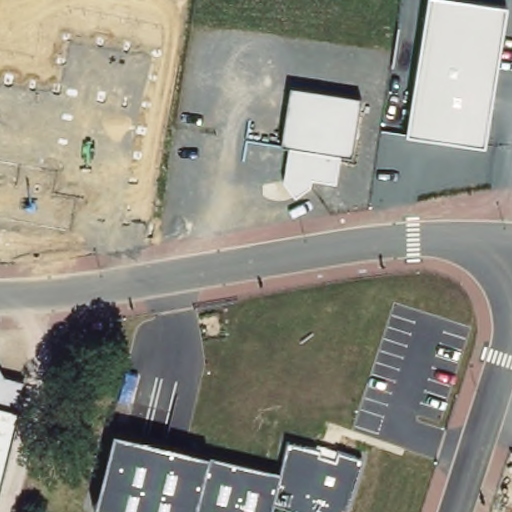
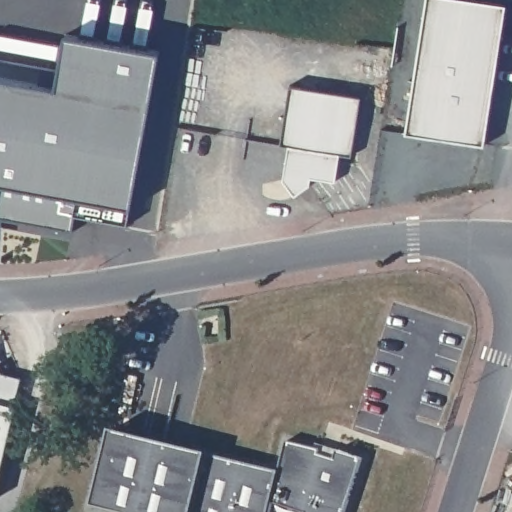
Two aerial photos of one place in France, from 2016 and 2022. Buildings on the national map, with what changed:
unchanged [(484,146),(405,135),(425,0),(473,0),(506,5),(484,146)]
new [(55,87),(65,35),(159,52),(126,226),(73,216),(70,232),(0,219),(0,76),(55,87)]
unchanged [(336,181),(312,178),(309,186),(294,196),(283,181),(288,147),(281,145),(291,87),(359,99),(351,156),(339,155),(336,181)]
unchanged [(3,376),(23,382),(0,481),(0,372),(3,376)]
unchanged [(278,472),(286,442),(315,448),(316,444),(339,451),(361,458),(343,512),(304,512),(272,502),(269,512),(115,512),(94,507),(114,430),(208,453),(278,472)]

